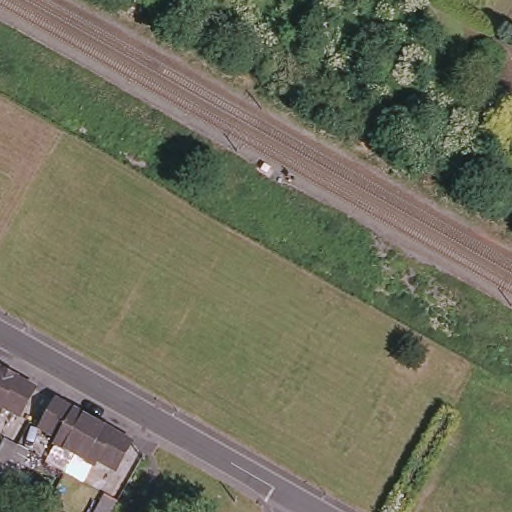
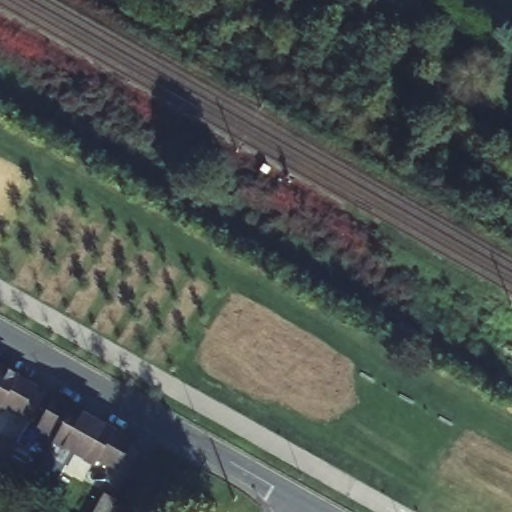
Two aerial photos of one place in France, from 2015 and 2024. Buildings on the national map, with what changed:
unchanged [(0,404),(0,368),(14,376),(34,387),(18,414),(0,404)]
unchanged [(96,458),(93,463),(74,453),(55,442),(57,437),(40,427),(56,400),(74,410),(92,420),(111,431),(130,442),(115,469),(96,458)]
unchanged [(5,437),(17,444),(27,451),(18,468),(15,475),(11,481),(0,474),(0,446),(5,437)]
unchanged [(109,496),(116,501),(110,512),(95,512),(105,494),(109,496)]

